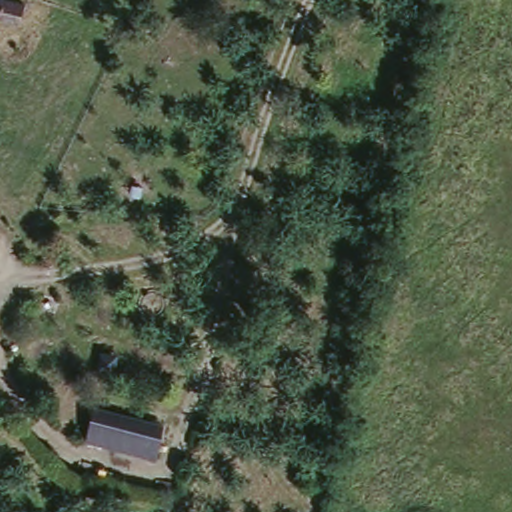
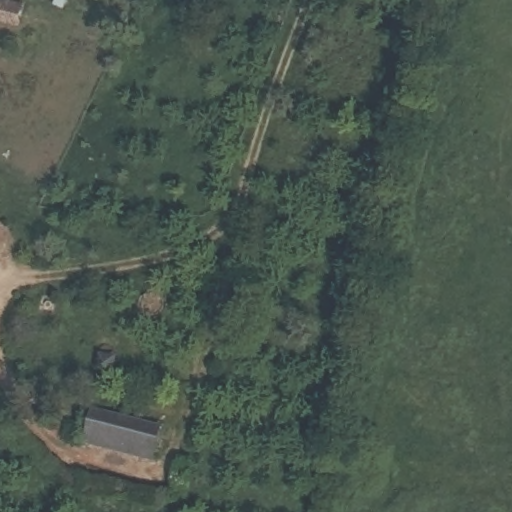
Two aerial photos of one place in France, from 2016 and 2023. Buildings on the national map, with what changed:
unchanged [(16,22),(0,19),(0,0),(3,0),(20,3),(16,22)]
unchanged [(164,420),(156,453),(87,437),(95,404),(164,420)]

